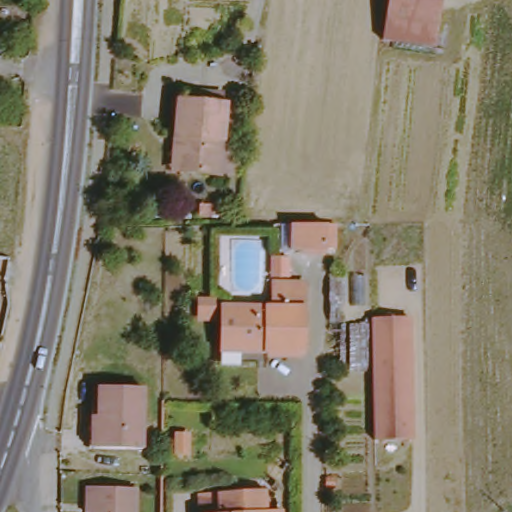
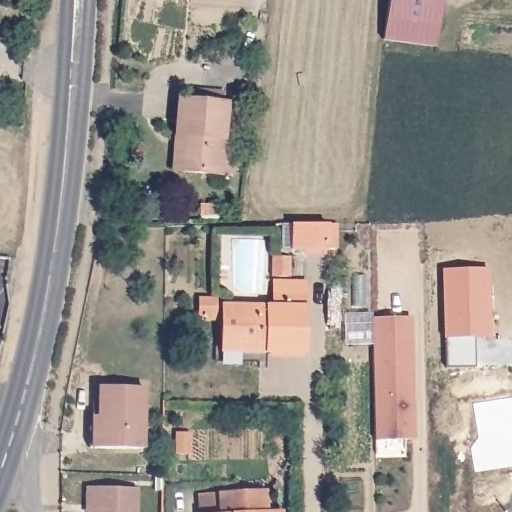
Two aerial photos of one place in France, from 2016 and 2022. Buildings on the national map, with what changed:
unchanged [(447,0),(440,49),(386,41),(392,0),(447,0)]
unchanged [(233,105),(226,176),(179,172),(185,101),(233,105)]
unchanged [(345,228),(346,253),(336,253),(293,255),(293,229),(336,228),(345,228)]
new [(490,266),(494,336),(476,337),(478,363),(445,363),(442,266),(490,266)]
unchanged [(310,354),(247,355),(247,346),(211,345),(211,307),(276,308),(277,283),(311,284),(310,354)]
unchanged [(417,443),(376,444),(373,321),(415,319),(417,443)]
unchanged [(90,427),(98,426),(98,389),(144,388),(145,450),(100,449),(91,449),(90,427)]
new [(473,473),(470,450),(479,437),(475,403),(512,398),(512,467),(473,473)]
unchanged [(180,453),(180,433),(191,433),(190,454),(180,453)]
unchanged [(141,512),(100,512),(100,489),(141,491),(141,512)]
unchanged [(205,498),(220,496),(269,493),(269,512),(205,512),(205,498)]

